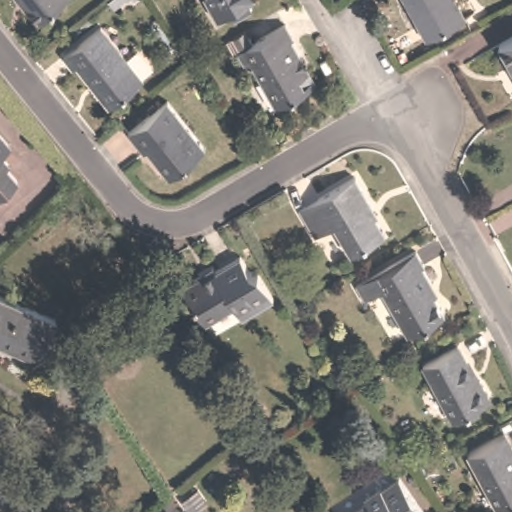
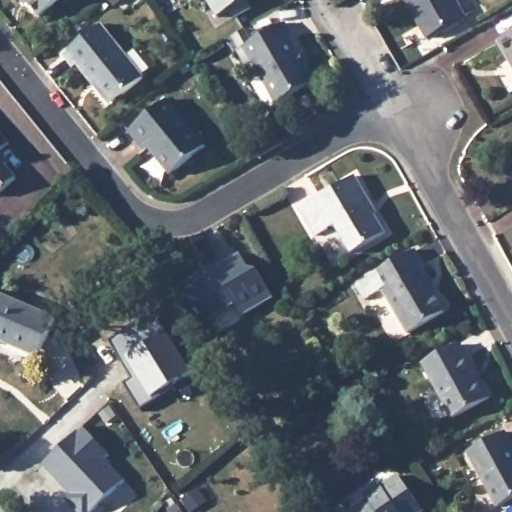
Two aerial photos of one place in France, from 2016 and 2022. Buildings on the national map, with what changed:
unchanged [(42,20),(31,7),(29,9),(21,0),(65,0),(42,20)]
unchanged [(235,19),(222,26),(208,4),(212,1),(211,0),(258,0),(261,4),(252,9),(257,16),(245,24),(239,27),(235,19)]
unchanged [(464,12),(426,34),(407,0),(457,0),(464,12)]
unchanged [(287,24),(296,39),(293,40),(302,55),(298,57),(314,84),(277,105),(252,62),(246,65),(239,52),(287,24)]
unchanged [(103,25),(146,79),(115,104),(98,82),(95,85),(79,66),(75,70),(65,56),(103,25)]
unchanged [(512,35),(512,67),(498,42),(512,35)]
unchanged [(169,97),(207,142),(171,171),(149,145),(145,147),(130,129),(169,97)]
unchanged [(0,146),(0,125),(11,136),(0,146)]
unchanged [(0,185),(0,151),(17,170),(0,185)]
unchanged [(355,173),(378,211),(375,214),(385,231),(351,251),(334,223),(315,234),(299,205),(355,173)]
unchanged [(199,270),(204,271),(239,250),(248,265),(257,268),(273,296),(242,315),(234,302),(206,320),(195,300),(190,297),(181,281),(199,270)]
unchanged [(409,335),(383,290),(380,291),(372,275),(417,250),(427,267),(425,268),(434,283),(439,293),(436,295),(447,314),(409,335)]
unchanged [(40,360),(0,343),(0,297),(55,320),(40,360)]
new [(109,340),(137,321),(140,326),(156,315),(192,369),(141,405),(126,382),(134,377),(124,363),(109,340)]
unchanged [(458,340),(475,368),(477,367),(492,393),(453,415),(422,360),(458,340)]
new [(111,455),(105,460),(125,480),(91,512),(76,512),(65,501),(71,495),(42,463),(82,425),(111,455)]
unchanged [(498,509),(468,453),(507,431),(512,441),(512,501),(498,509)]
unchanged [(366,491),(382,481),(383,483),(401,472),(423,507),(415,512),(344,512),(368,496),(366,491)]
unchanged [(176,499),(186,491),(198,509),(194,512),(168,512),(165,507),(176,499)]

